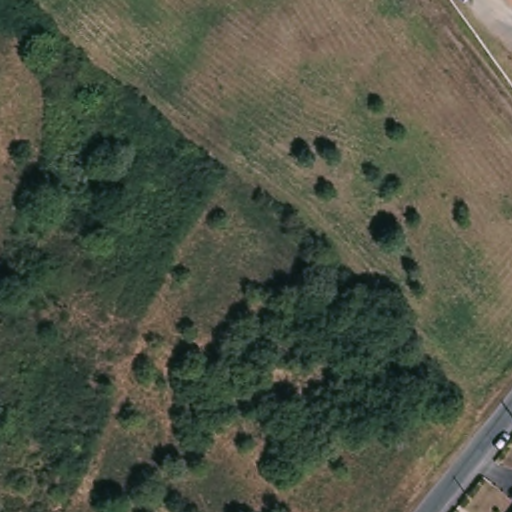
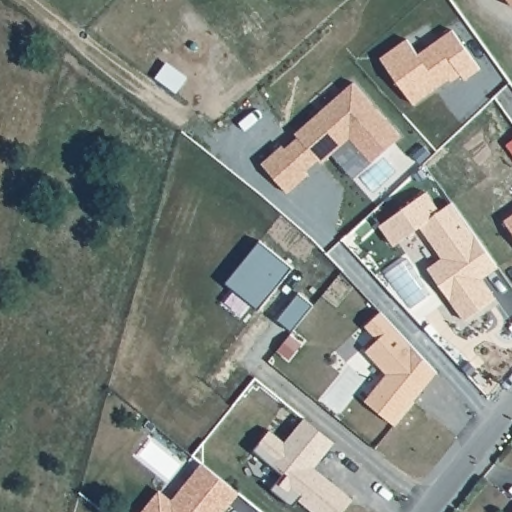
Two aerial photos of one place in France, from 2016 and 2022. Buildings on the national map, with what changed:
unchanged [(512,0),(512,7),(507,0),(512,0)]
new [(381,61),(407,41),(419,56),(453,31),(481,70),(466,81),(460,73),(415,106),(381,61)]
new [(261,163),(282,145),(286,148),(298,136),(295,133),(353,81),(400,134),(372,161),(350,138),(322,164),(320,160),(306,172),(308,175),(287,193),(261,163)]
new [(494,295),(485,302),(488,306),(467,323),(428,272),(442,261),(418,229),(407,238),(392,249),(377,229),(392,218),(422,195),(437,213),(449,204),(498,268),(482,281),(494,295)]
new [(502,223),(512,215),(512,235),(502,223)]
new [(257,244),(292,269),(260,314),(225,289),(257,244)]
new [(297,295),(313,307),(293,335),(277,323),(297,295)]
new [(437,372),(393,423),(365,399),(387,373),(366,351),(378,340),(365,326),(380,311),(437,372)]
new [(268,431),(284,442),(303,418),(335,442),(316,467),(352,500),(342,512),(315,512),(298,498),(292,504),(272,487),(283,473),(255,450),(268,431)]
new [(168,483),(132,453),(148,435),(184,464),(168,483)]
new [(157,491),(171,502),(201,463),(237,491),(220,512),(144,512),(157,491)]

